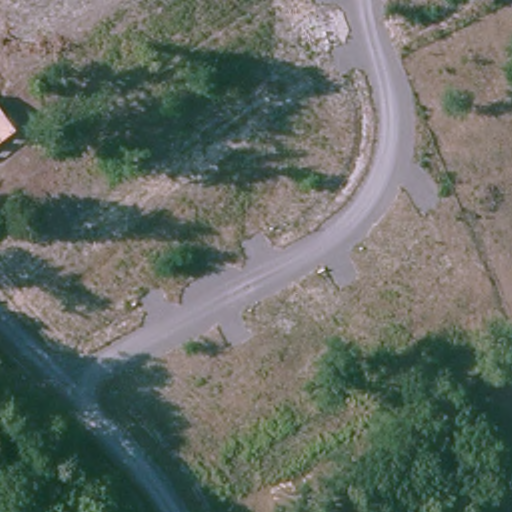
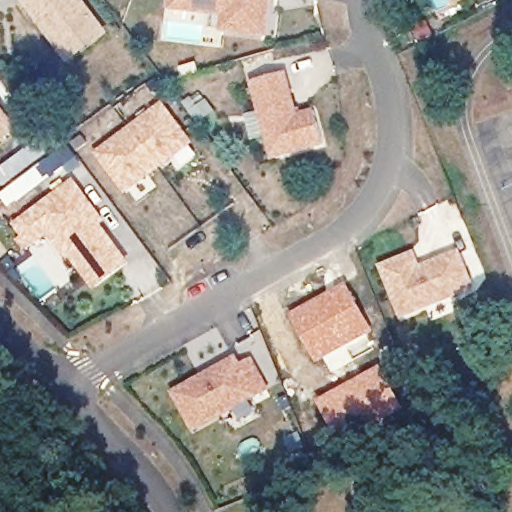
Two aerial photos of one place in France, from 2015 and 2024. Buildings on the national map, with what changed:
unchanged [(65,54),(54,40),(25,0),(79,0),(89,13),(100,28),(65,54)]
new [(221,31),(223,16),(170,10),(171,0),(272,0),(268,37),(221,31)]
new [(272,161),(253,83),(288,74),(298,114),(319,110),(327,147),(272,161)]
new [(18,130),(0,142),(0,104),(18,130)]
new [(98,155),(161,107),(189,142),(126,192),(98,155)]
new [(77,156),(84,165),(71,175),(64,166),(11,208),(0,194),(0,192),(14,181),(4,168),(26,150),(37,164),(67,164),(77,156)]
new [(37,228),(24,238),(10,218),(66,176),(96,215),(92,218),(97,225),(120,257),(89,280),(65,248),(56,254),(37,228)]
new [(380,266),(415,252),(422,266),(459,251),(476,288),(402,320),(380,266)]
new [(344,281),(373,333),(348,347),(354,359),(330,372),(322,358),(313,362),(285,314),(344,281)]
new [(242,364),(252,359),(269,391),(258,398),(195,433),(172,392),(238,356),(242,364)]
new [(380,364),(410,413),(345,449),(315,401),(380,364)]

